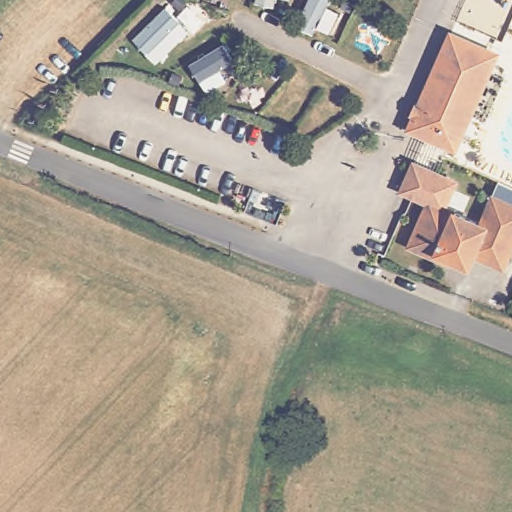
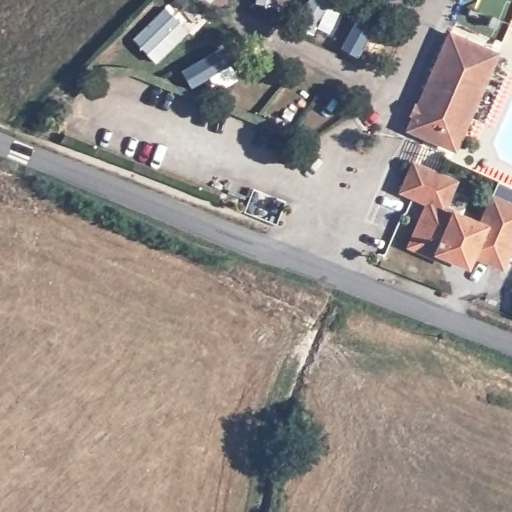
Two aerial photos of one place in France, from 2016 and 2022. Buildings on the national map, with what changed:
unchanged [(500,51),(456,150),(405,128),(450,29),(500,51)]
unchanged [(458,179),(447,204),(480,218),(493,192),(512,201),(512,250),(504,269),(475,257),(470,268),(452,260),(450,264),(406,245),(425,202),(395,189),(409,157),(458,179)]

